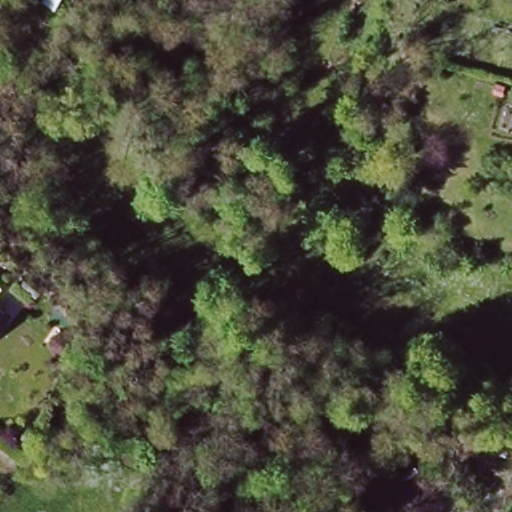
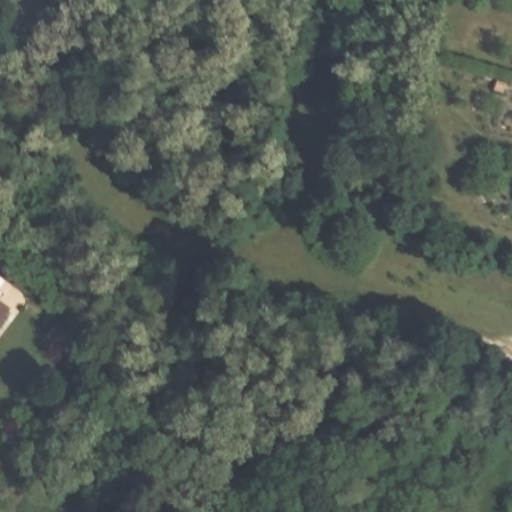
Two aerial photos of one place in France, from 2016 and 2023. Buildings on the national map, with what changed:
unchanged [(0,323),(0,305),(9,312),(0,323)]
unchanged [(53,366),(37,357),(48,337),(63,344),(53,366)]

